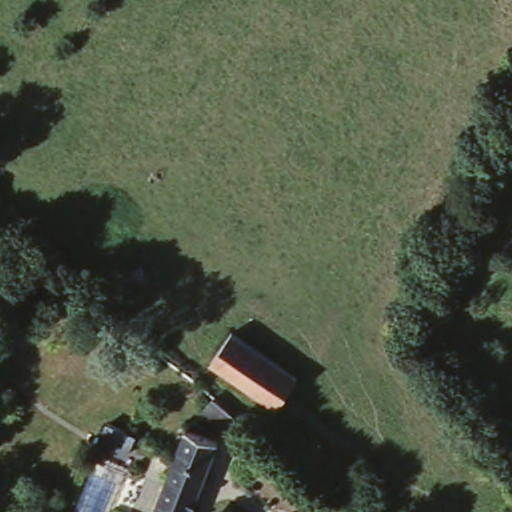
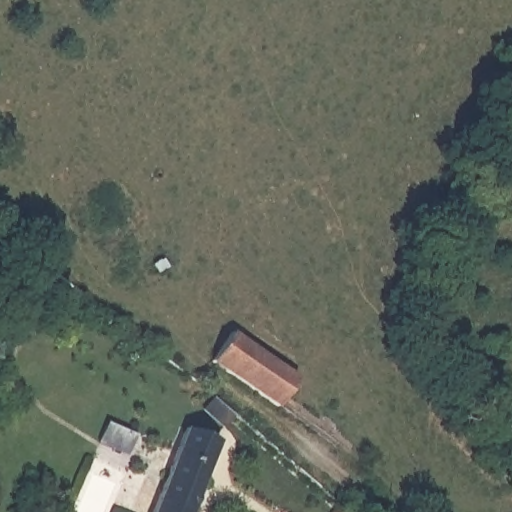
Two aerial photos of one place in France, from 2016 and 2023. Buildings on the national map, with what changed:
unchanged [(255,348),(230,330),(242,313),(309,360),(295,378),(255,348)]
unchanged [(273,408),(209,360),(230,330),(255,348),(295,378),(273,408)]
unchanged [(187,418),(197,426),(196,433),(215,440),(236,456),(226,462),(214,452),(190,512),(151,512),(187,418)]

